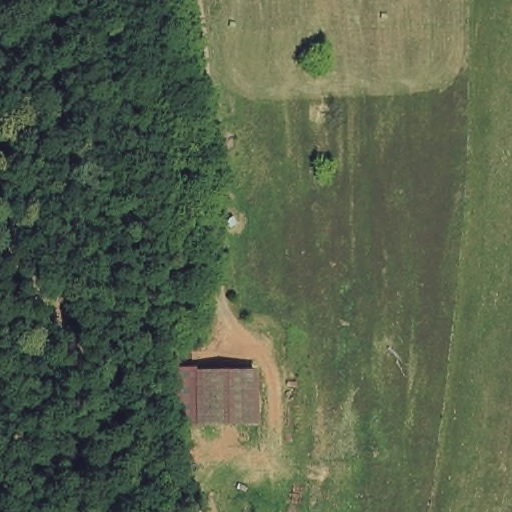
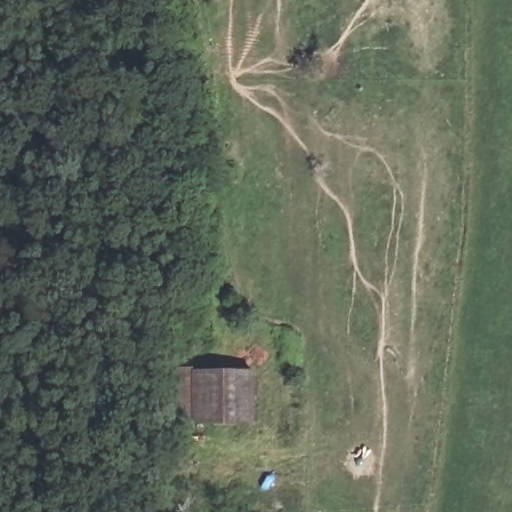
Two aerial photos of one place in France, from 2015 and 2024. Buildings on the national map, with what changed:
unchanged [(196,427),(194,372),(242,370),(255,369),(257,425),(243,426),(196,427)]

